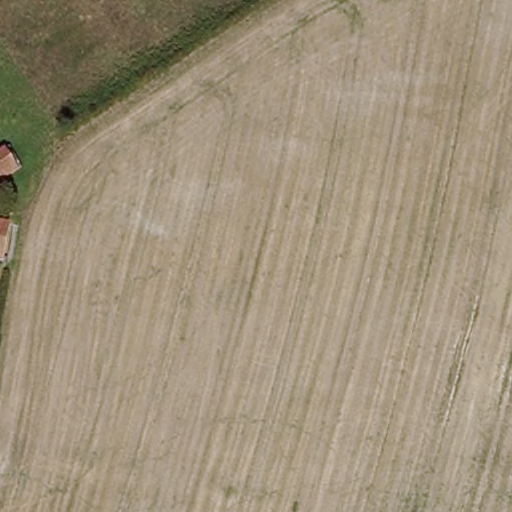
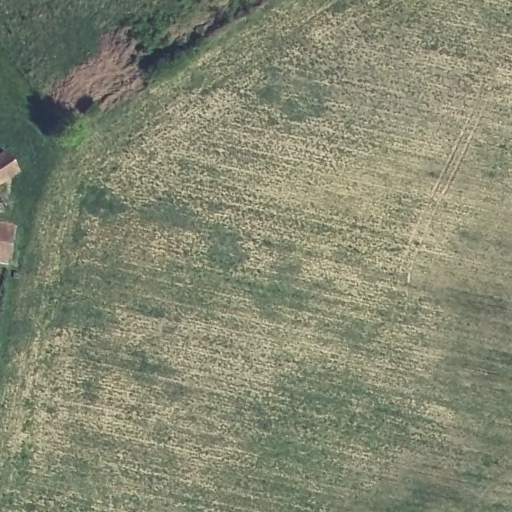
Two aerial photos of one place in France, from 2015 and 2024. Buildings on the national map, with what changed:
unchanged [(0,153),(2,152),(15,174),(0,181),(0,153)]
unchanged [(0,248),(0,224),(5,225),(0,248)]

